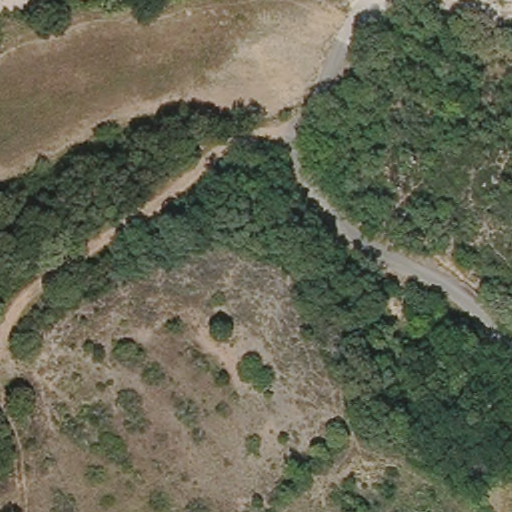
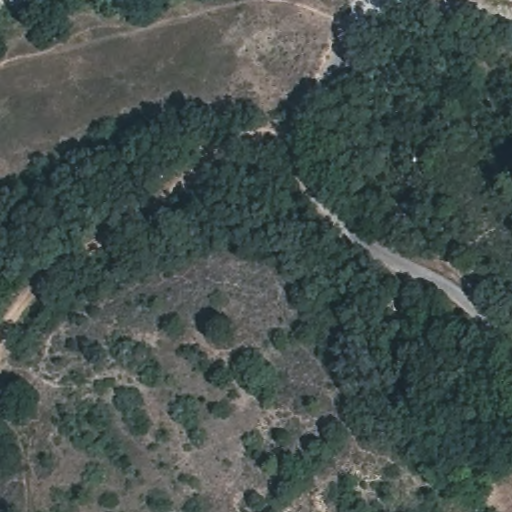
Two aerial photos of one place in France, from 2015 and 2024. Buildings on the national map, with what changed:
[]

